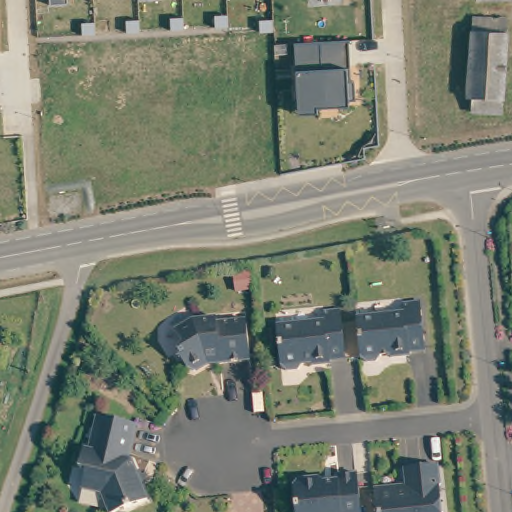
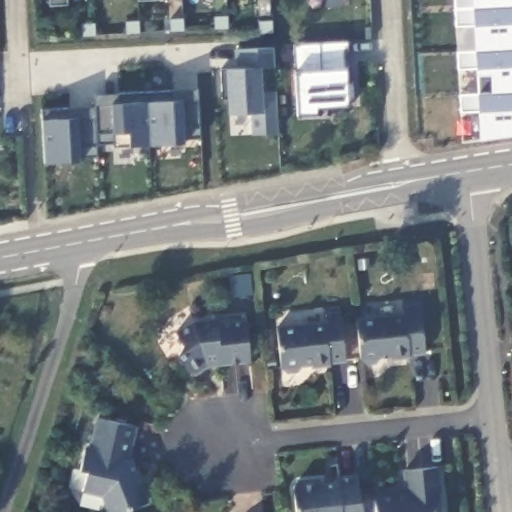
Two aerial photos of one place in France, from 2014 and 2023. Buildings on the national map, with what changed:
unchanged [(51,4),(50,0),(67,0),(67,4),(51,4)]
new [(483,136),(482,113),(463,113),(463,95),(481,93),(480,69),(461,69),(461,51),(477,49),(475,24),(456,25),(455,0),(512,0),(512,135),(483,136)]
demolished [(505,113),(471,110),(472,99),(467,99),(472,14),(511,16),(505,113)]
unchanged [(352,81),(355,81),(356,100),(351,100),(351,105),(321,106),(320,112),(300,114),(297,73),(300,73),(297,43),(348,41),(352,81)]
new [(278,132),(254,134),(252,112),(231,115),(228,66),(237,66),(237,48),(276,46),(276,66),(262,68),(262,91),(277,90),(278,132)]
new [(81,157),(81,159),(46,162),(44,118),(42,109),(96,106),(96,94),(198,89),(201,138),(185,140),(129,145),(128,140),(97,143),(97,155),(81,157)]
unchanged [(410,308),(409,301),(424,300),(429,348),(386,352),(382,357),(378,355),(364,356),(360,313),(410,308)]
unchanged [(345,358),(321,365),(307,366),(302,363),(293,370),(286,371),(280,362),(277,329),(283,324),(323,320),(322,311),(340,310),(345,358)]
unchanged [(227,353),(217,355),(211,364),(199,366),(187,349),(193,339),(187,325),(206,315),(224,312),(226,320),(253,315),(260,354),(235,359),(228,361),(227,353)]
unchanged [(99,494),(85,488),(90,471),(85,470),(81,468),(86,449),(90,450),(101,414),(138,425),(127,461),(135,463),(149,500),(122,512),(113,512),(111,505),(106,497),(99,494)]
unchanged [(363,512),(300,512),(297,488),(306,478),(324,476),(330,480),(338,480),(342,473),(359,472),(363,512)]
unchanged [(407,502),(416,506),(413,482),(443,479),(447,512),(382,512),(382,504),(407,502)]

